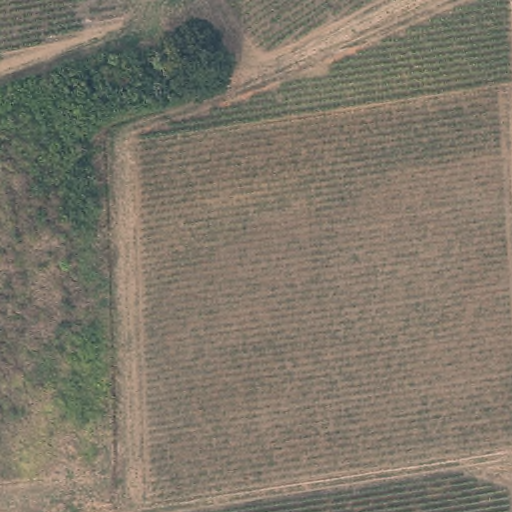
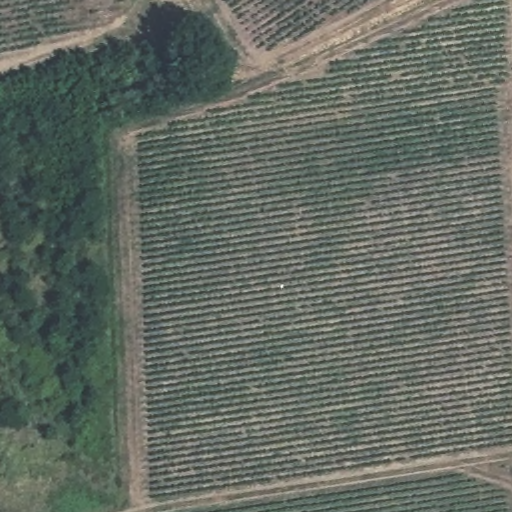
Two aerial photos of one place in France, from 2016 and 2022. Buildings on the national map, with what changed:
[]

